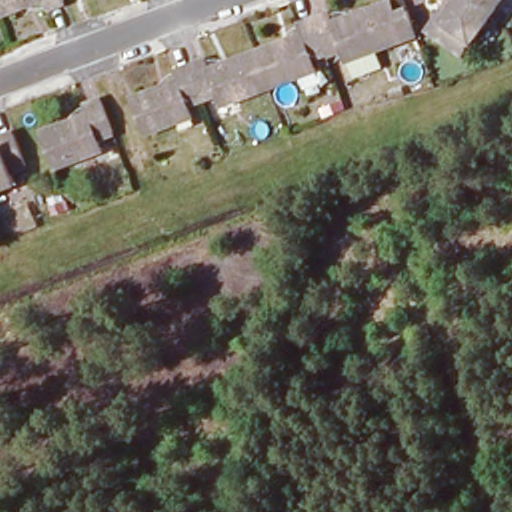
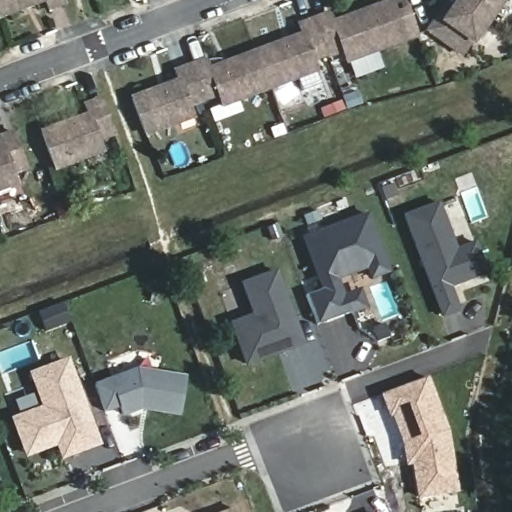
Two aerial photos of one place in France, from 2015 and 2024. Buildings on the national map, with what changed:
unchanged [(0,15),(0,13),(0,0),(39,0),(0,15)]
unchanged [(49,6),(47,0),(65,0),(65,1),(49,6)]
unchanged [(423,29),(443,0),(448,0),(450,3),(453,0),(497,0),(461,57),(423,29)]
unchanged [(178,81),(174,71),(205,60),(209,69),(252,54),(302,35),(297,26),(329,15),(332,24),(390,1),(395,15),(406,11),(414,34),(415,35),(345,60),(342,51),(311,62),(314,72),(222,105),(218,96),(188,107),(191,117),(144,134),(132,99),(178,81)]
unchanged [(113,138),(97,144),(100,153),(53,170),(42,136),(89,120),(85,110),(101,105),(113,138)]
unchanged [(25,170),(10,175),(14,185),(0,190),(0,152),(2,151),(0,146),(0,142),(13,136),(25,170)]
new [(437,204),(454,251),(473,244),(485,274),(448,288),(457,311),(441,317),(403,216),(437,204)]
new [(320,290),(302,239),(365,215),(387,272),(369,278),(365,267),(334,279),(341,297),(357,291),(363,307),(347,313),(322,323),(315,326),(304,296),(310,293),(320,290)]
new [(277,353),(245,365),(229,325),(252,316),(240,285),(274,272),(292,320),(301,344),(277,353)]
new [(52,441),(21,453),(8,418),(39,406),(26,373),(61,360),(92,442),(70,451),(57,456),(52,441)]
new [(135,370),(183,378),(177,416),(139,410),(122,416),(118,407),(102,413),(93,386),(135,370)]
new [(424,378),(444,431),(455,491),(417,497),(408,441),(402,443),(391,415),(388,415),(380,395),(424,378)]
new [(234,512),(221,512),(232,508),(234,512)]

